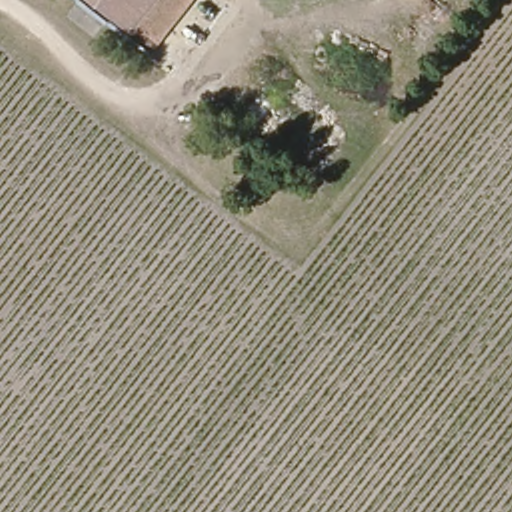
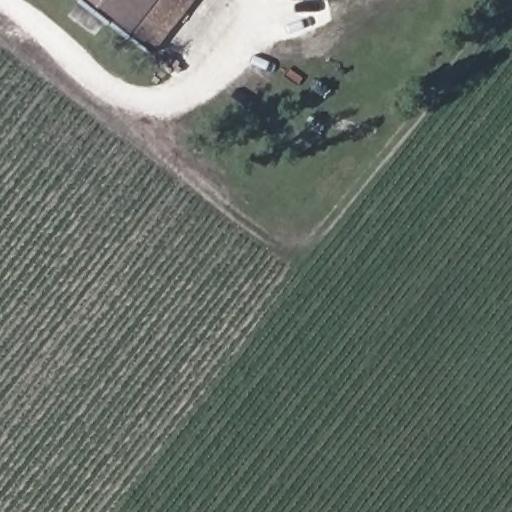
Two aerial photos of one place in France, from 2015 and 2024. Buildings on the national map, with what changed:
unchanged [(88,4),(84,0),(122,0),(107,19),(88,4)]
unchanged [(107,19),(122,0),(153,0),(126,34),(107,19)]
unchanged [(154,0),(178,19),(151,54),(126,34),(153,0),(154,0)]
unchanged [(178,0),(188,7),(178,19),(154,0),(178,0)]
unchanged [(193,0),(188,7),(178,0),(193,0)]

